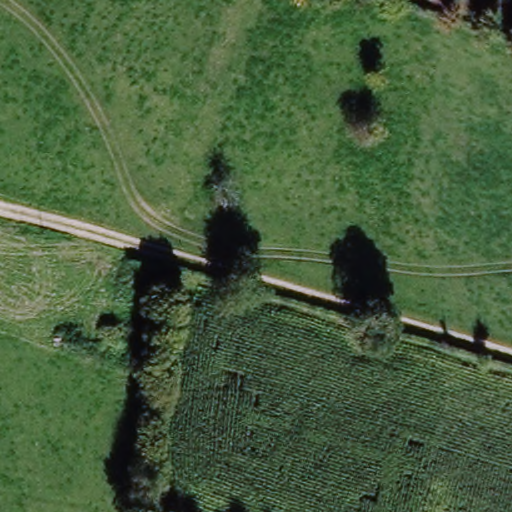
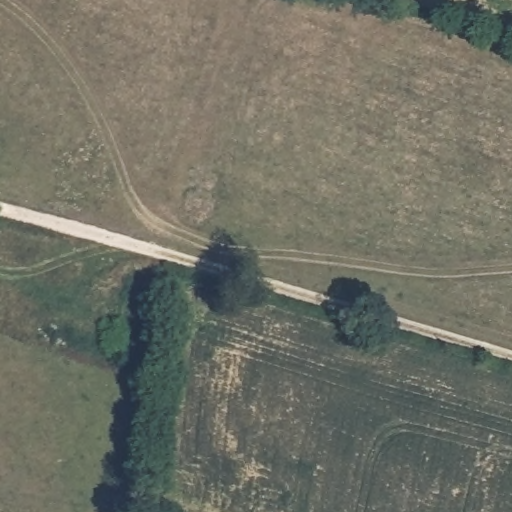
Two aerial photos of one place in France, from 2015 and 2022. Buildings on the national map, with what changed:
[]

